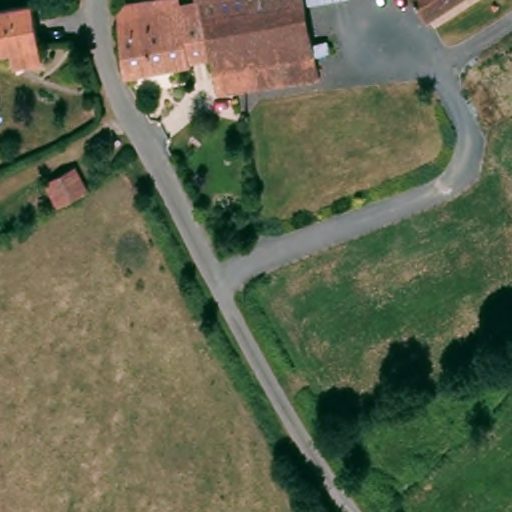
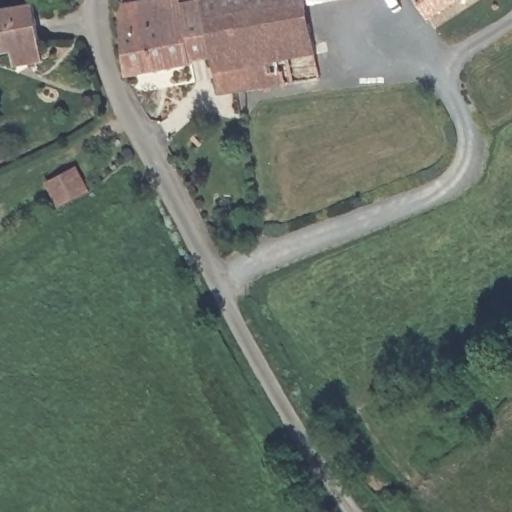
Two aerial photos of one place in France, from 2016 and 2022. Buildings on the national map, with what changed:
unchanged [(16,48),(0,51),(0,5),(24,0),(41,0),(50,59),(19,64),(16,48)]
unchanged [(129,0),(185,0),(187,10),(195,60),(196,67),(184,70),(183,63),(131,72),(125,9),(129,0)]
unchanged [(224,91),(217,56),(209,15),(207,6),(199,8),(187,10),(185,0),(308,0),(323,73),(224,91)]
unchanged [(432,9),(427,0),(447,0),(432,9)]
unchanged [(207,6),(209,15),(217,56),(195,60),(187,10),(207,6)]

